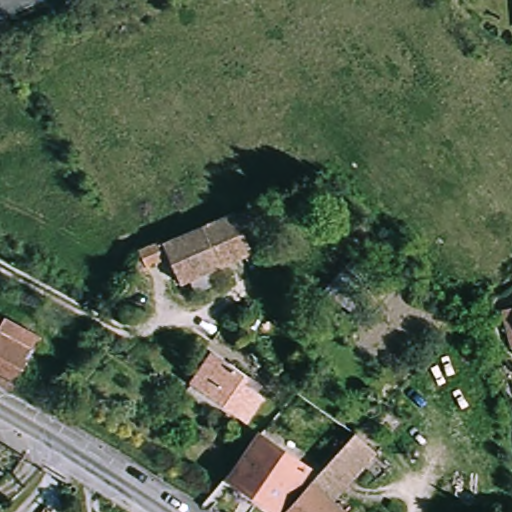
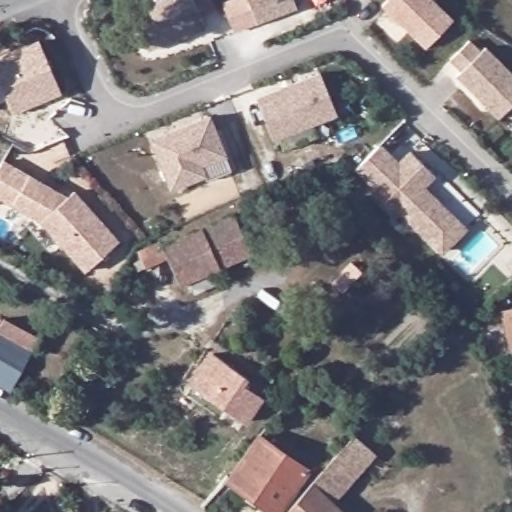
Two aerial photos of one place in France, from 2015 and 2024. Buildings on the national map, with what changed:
new [(147,50),(132,11),(160,0),(190,0),(203,29),(147,50)]
new [(257,24),(248,0),(294,0),(298,9),(257,24)]
new [(426,46),(382,1),(383,0),(432,0),(450,18),(426,46)]
new [(13,115),(0,85),(0,55),(38,39),(62,93),(13,115)]
new [(467,40),(478,51),(482,46),(512,75),(512,103),(497,119),(453,76),(459,70),(447,59),(467,40)]
new [(272,139),(255,98),(279,88),(294,81),(319,71),(336,113),(311,123),(296,130),(272,139)]
new [(208,116),(224,156),(200,166),(204,177),(169,191),(149,141),(208,116)]
new [(378,144),(398,163),(410,150),(433,173),(421,185),(465,228),(442,252),(399,210),(395,215),(370,192),(375,187),(355,167),(378,144)]
new [(32,178),(16,207),(0,198),(0,166),(3,161),(32,178)]
new [(50,188),(69,198),(76,192),(121,243),(88,272),(43,222),(33,216),(16,207),(32,178),(50,188)]
unchanged [(247,208),(253,222),(241,227),(251,252),(207,271),(213,285),(195,293),(189,279),(180,283),(170,261),(147,271),(140,255),(247,208)]
unchanged [(512,310),(512,349),(510,350),(500,313),(512,310)]
unchanged [(40,338),(12,389),(0,383),(0,323),(3,318),(40,338)]
unchanged [(260,385),(256,392),(262,396),(245,421),(193,386),(213,354),(260,385)]
unchanged [(377,454),(335,503),(312,483),(355,434),(377,454)]
unchanged [(307,469),(276,512),(272,512),(226,480),(260,436),(307,469)]
unchanged [(312,483),(335,503),(345,512),(286,512),(312,483)]

